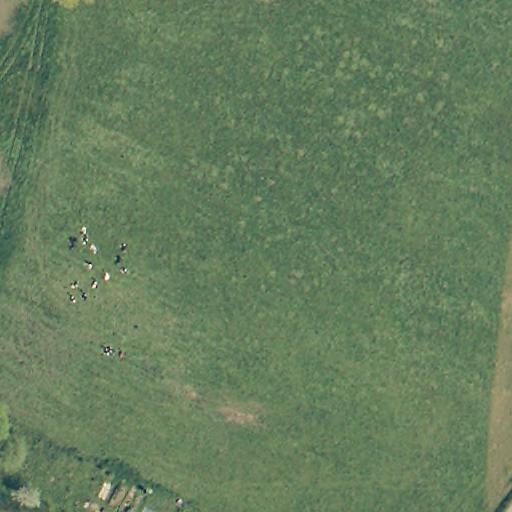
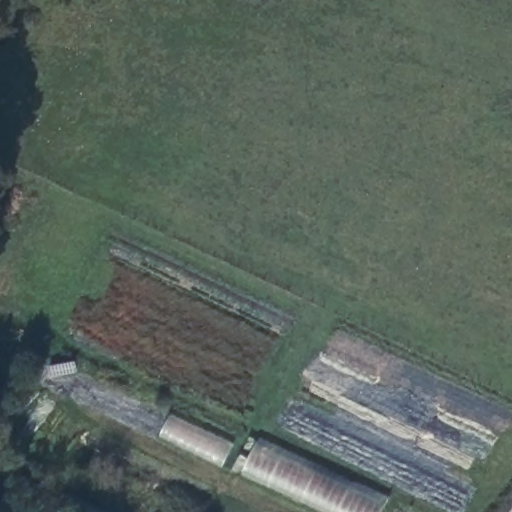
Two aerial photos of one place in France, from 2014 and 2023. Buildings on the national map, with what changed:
new [(382,512),(319,512),(241,473),(258,439),(387,502),(382,512)]
new [(104,512),(80,512),(85,503),(104,512)]

